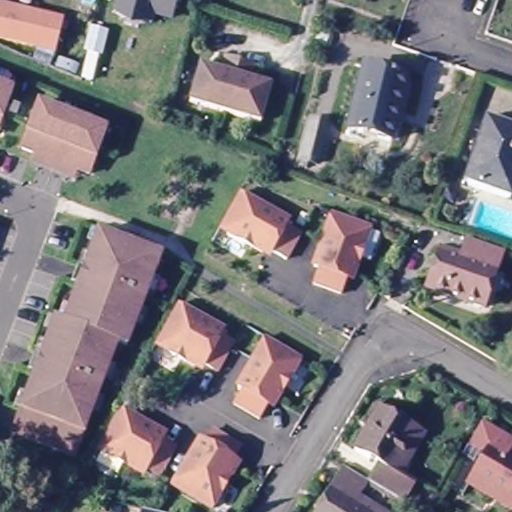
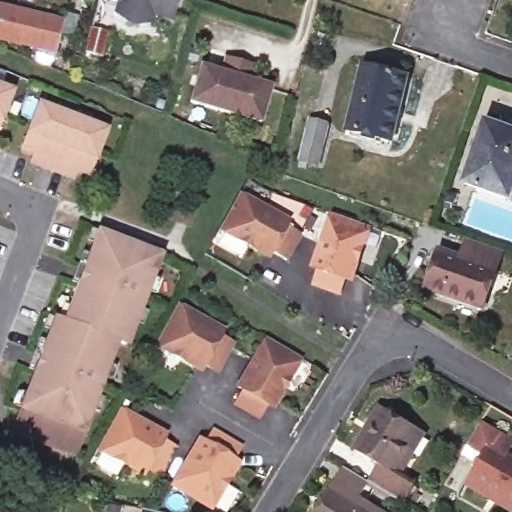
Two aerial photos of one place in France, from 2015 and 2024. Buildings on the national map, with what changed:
unchanged [(160,13),(157,24),(137,24),(119,14),(121,4),(105,0),(182,0),(177,18),(160,13)]
unchanged [(34,44),(0,36),(0,4),(52,17),(44,47),(42,55),(32,52),(34,44)]
unchanged [(111,33),(105,58),(90,54),(96,30),(111,33)]
unchanged [(249,83),(269,88),(260,124),(191,107),(199,71),(220,76),(223,61),(252,68),(249,83)]
unchanged [(393,143),(351,132),(367,70),(410,81),(393,143)]
unchanged [(7,96),(0,114),(0,94),(7,96)]
unchanged [(101,135),(84,180),(65,173),(62,181),(34,170),(37,163),(17,155),(34,109),(101,135)]
unchanged [(298,164),(302,155),(315,114),(331,119),(319,159),(311,156),(308,166),(298,164)]
unchanged [(488,123),(512,131),(512,202),(466,187),(488,123)]
unchanged [(232,212),(242,193),(291,221),(288,225),(303,233),(289,260),(268,248),(267,253),(222,229),(232,212)]
unchanged [(376,226),(361,274),(357,272),(349,294),(321,285),(326,269),(321,268),(338,214),(376,226)]
unchanged [(77,292),(70,290),(75,275),(82,277),(96,239),(159,262),(126,352),(117,349),(63,329),(77,292)]
unchanged [(458,261),(466,242),(502,254),(483,311),(426,293),(432,277),(433,270),(439,255),(458,261)]
unchanged [(225,328),(222,333),(235,340),(220,368),(202,358),(198,364),(157,341),(179,303),(225,328)]
unchanged [(34,444),(13,436),(35,377),(27,375),(33,360),(40,362),(54,326),(63,329),(117,349),(83,439),(41,424),(34,444)]
unchanged [(306,353),(282,396),(277,394),(266,414),(240,400),(248,385),(244,382),(272,333),(306,353)]
unchanged [(354,446),(380,405),(416,426),(423,432),(410,454),(399,472),(410,479),(398,498),(369,480),(367,478),(377,461),(354,446)]
unchanged [(163,428),(160,434),(178,444),(162,473),(149,466),(147,471),(100,446),(111,427),(122,406),(163,428)]
unchanged [(483,457),(477,453),(472,459),(462,453),(469,443),(482,421),(508,435),(512,437),(512,445),(508,452),(512,454),(512,508),(491,497),(468,484),(483,457)]
unchanged [(74,465),(32,450),(34,444),(41,424),(83,439),(74,465)]
unchanged [(201,441),(208,446),(216,432),(243,448),(232,466),(239,469),(216,510),(175,487),(201,441)]
unchanged [(344,464),(367,478),(369,480),(358,498),(381,512),(314,512),(344,464)]
unchanged [(141,505),(166,512),(139,512),(141,505)]

